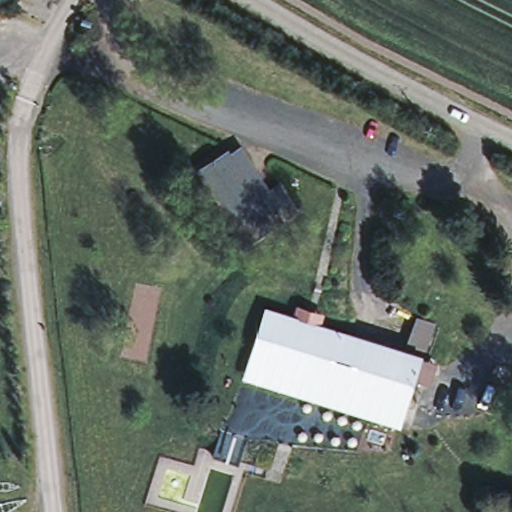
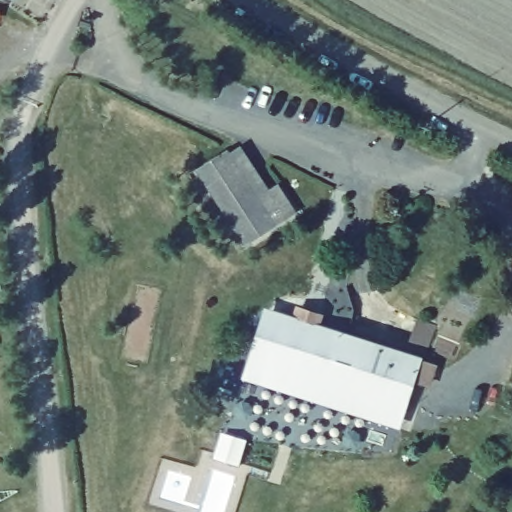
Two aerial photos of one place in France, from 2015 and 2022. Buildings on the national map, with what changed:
unchanged [(289,222),(270,235),(246,251),(197,176),(222,160),(252,208),(272,196),(289,222)]
unchanged [(297,307),(320,315),(317,326),(420,358),(403,410),(264,367),(281,315),(293,318),(297,307)]
unchanged [(397,428),(242,379),(264,309),(281,315),(264,367),(403,410),(397,428)]
unchanged [(242,457),(239,469),(213,461),(217,449),(242,457)]

